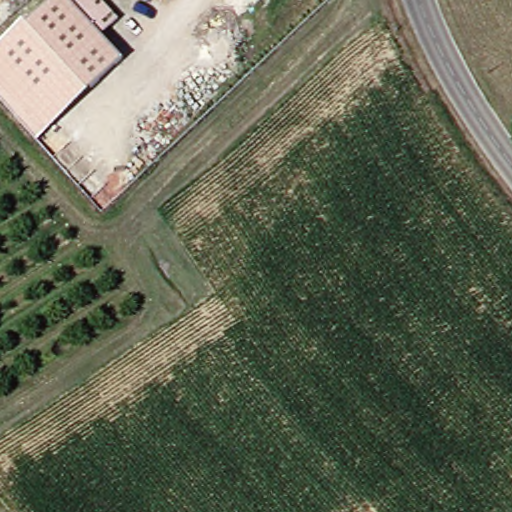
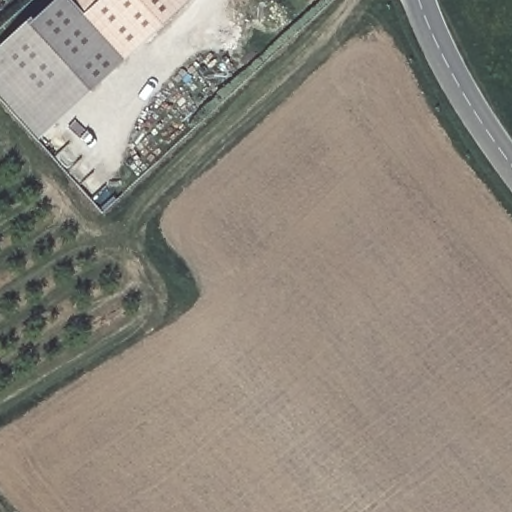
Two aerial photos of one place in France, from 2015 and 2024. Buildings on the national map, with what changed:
unchanged [(53,0),(68,0),(121,62),(37,140),(0,99),(0,47),(53,0)]
new [(121,62),(68,0),(189,0),(121,62)]

